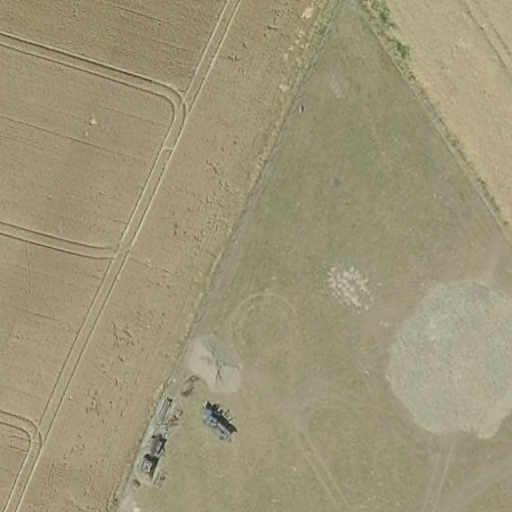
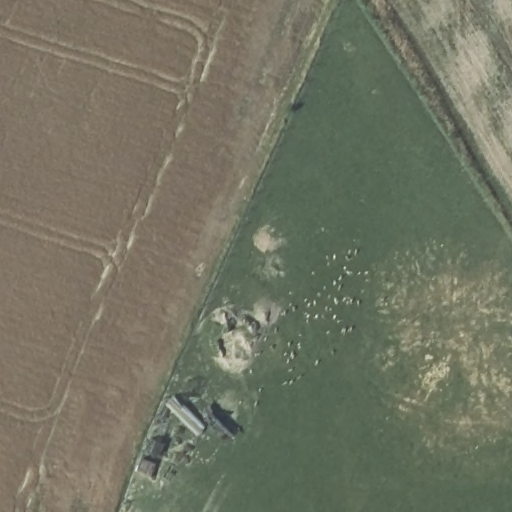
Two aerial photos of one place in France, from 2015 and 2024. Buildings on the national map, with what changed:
[]

